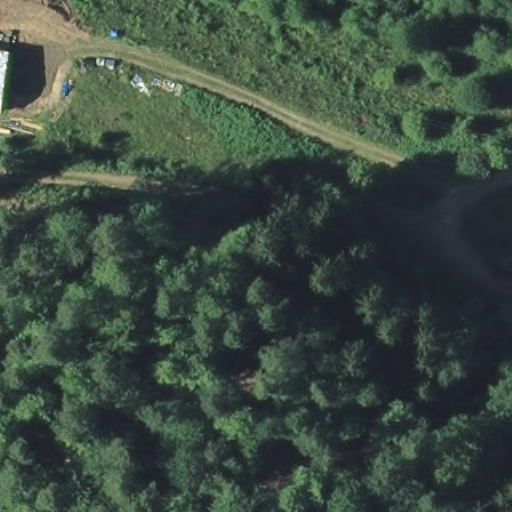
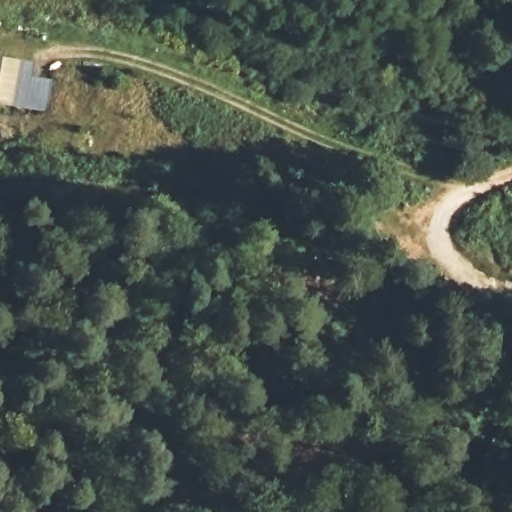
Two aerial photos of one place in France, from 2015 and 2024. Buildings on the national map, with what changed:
unchanged [(0,123),(0,54),(7,55),(1,124),(0,123)]

